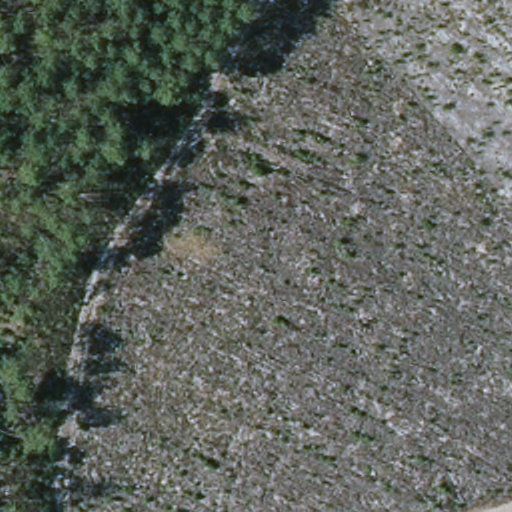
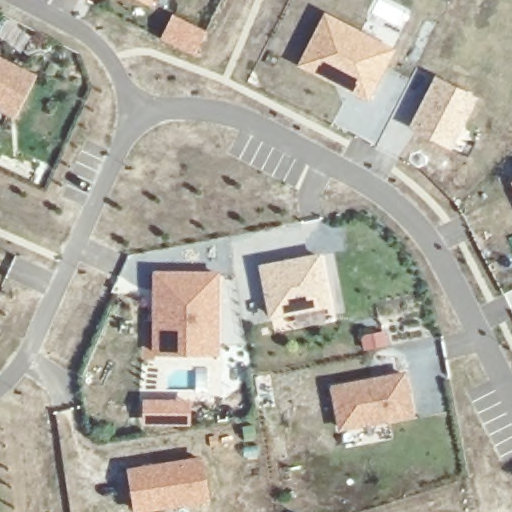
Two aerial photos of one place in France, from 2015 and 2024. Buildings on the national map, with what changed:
new [(395,50),(368,103),(296,67),(325,13),(395,50)]
new [(17,117),(0,109),(0,54),(39,73),(17,117)]
new [(434,74),(478,97),(451,149),(407,125),(434,74)]
new [(510,182),(512,181),(512,187),(510,182)]
new [(330,308),(269,319),(257,264),(321,252),(330,308)]
new [(220,270),(220,354),(153,354),(152,272),(220,270)]
new [(406,370),(415,416),(338,432),(329,387),(406,370)]
new [(142,398),(190,399),(190,418),(142,416),(142,398)]
new [(210,502),(149,512),(133,512),(125,467),(203,456),(210,502)]

